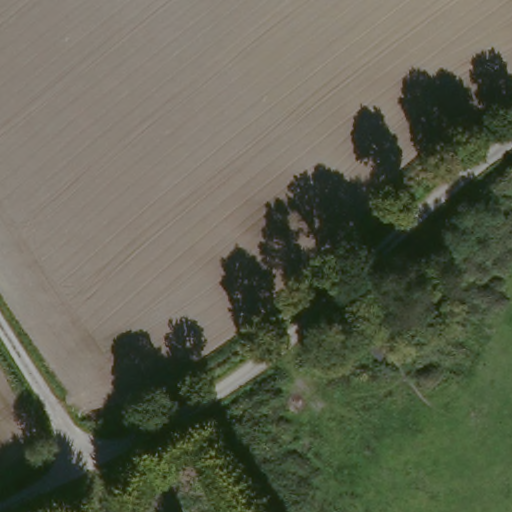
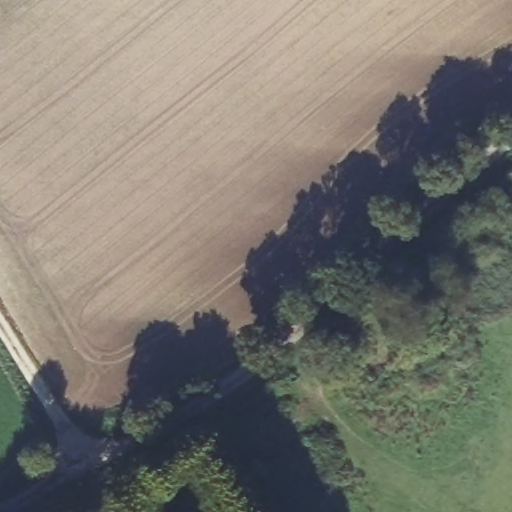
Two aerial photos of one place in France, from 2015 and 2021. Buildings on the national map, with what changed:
unchanged [(381,348),(366,331),(396,308),(409,325),(381,348)]

